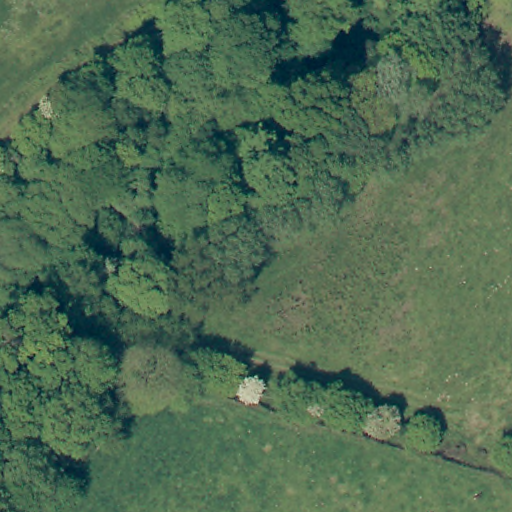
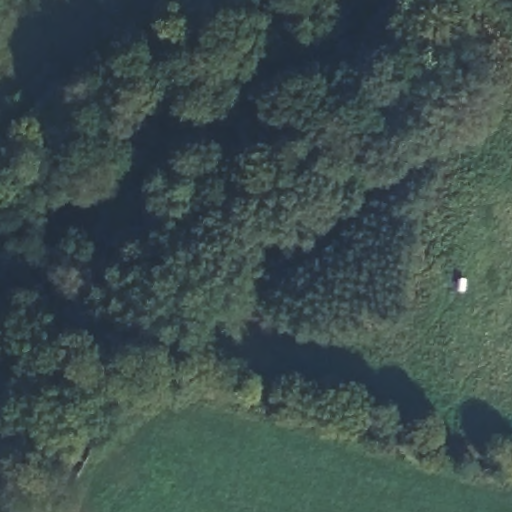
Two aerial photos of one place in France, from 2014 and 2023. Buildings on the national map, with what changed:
[]

